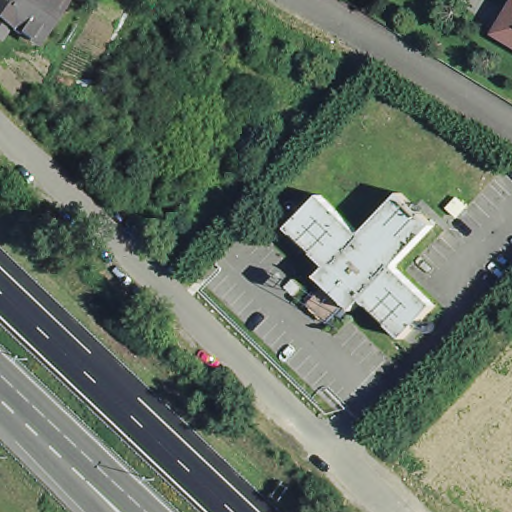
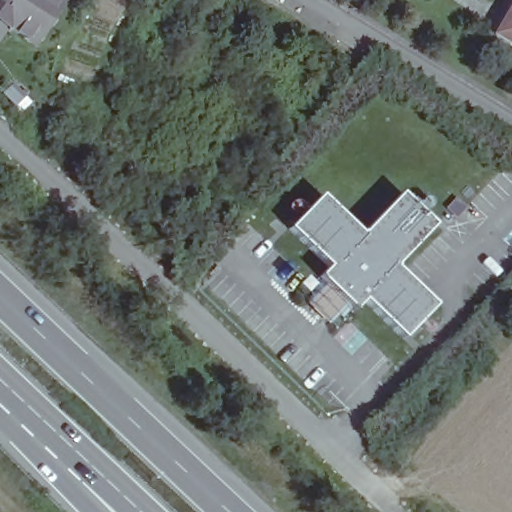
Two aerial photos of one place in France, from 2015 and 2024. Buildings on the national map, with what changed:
unchanged [(25,23),(17,34),(0,23),(0,0),(40,0),(37,5),(43,10),(32,27),(25,23)]
unchanged [(493,32),(509,0),(512,0),(512,43),(493,32)]
unchanged [(329,263),(290,225),(322,192),(362,231),(402,190),(435,222),(395,263),(436,302),(403,335),(364,297),(355,307),(320,273),(329,263)]
unchanged [(348,306),(325,325),(302,302),(323,281),(348,306)]

